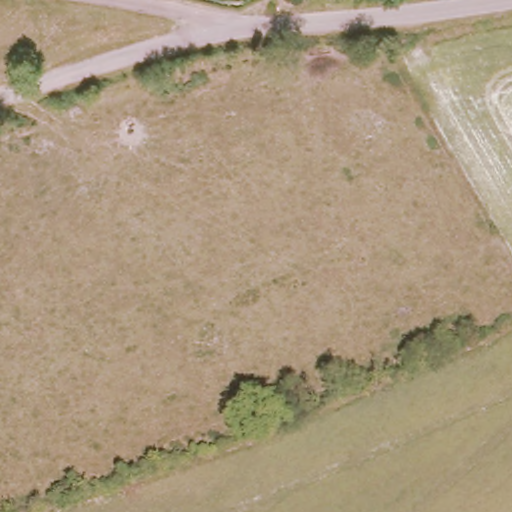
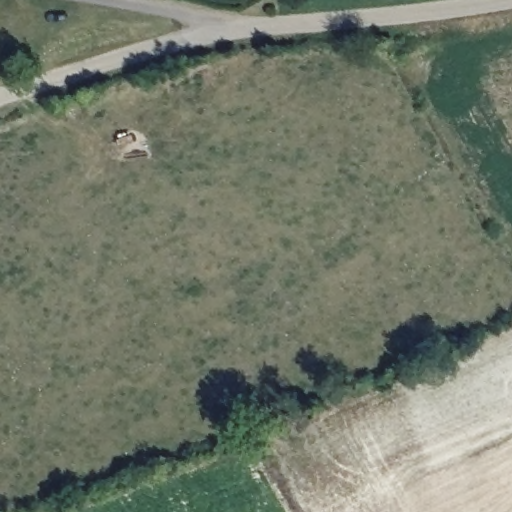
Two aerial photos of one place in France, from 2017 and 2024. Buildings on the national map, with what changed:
[]

